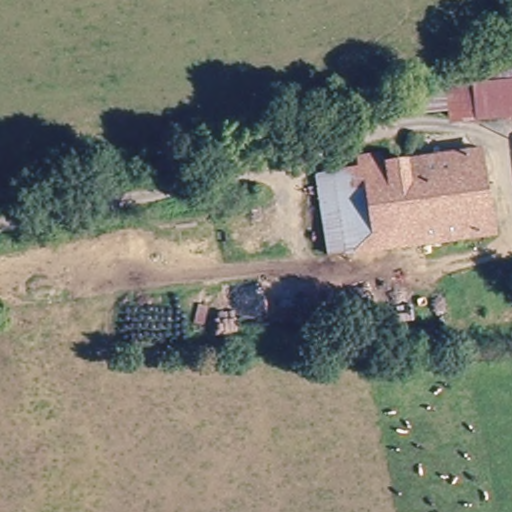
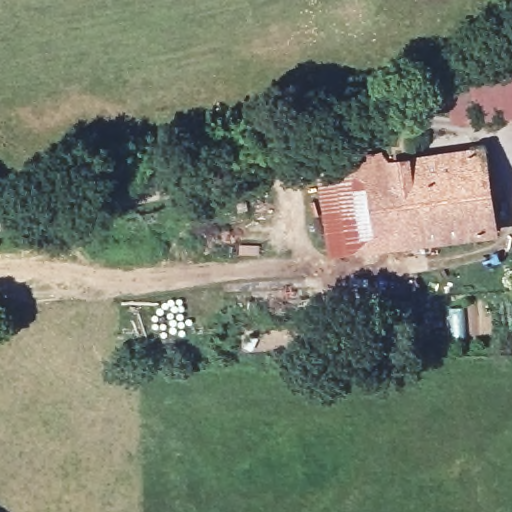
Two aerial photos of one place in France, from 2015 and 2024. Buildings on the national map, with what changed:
unchanged [(409,117),(407,88),(446,84),(446,76),(476,72),(475,45),(512,41),(512,117),(448,123),(446,112),(409,117)]
unchanged [(330,256),(314,172),(383,157),(385,166),(481,147),(495,229),(330,256)]

